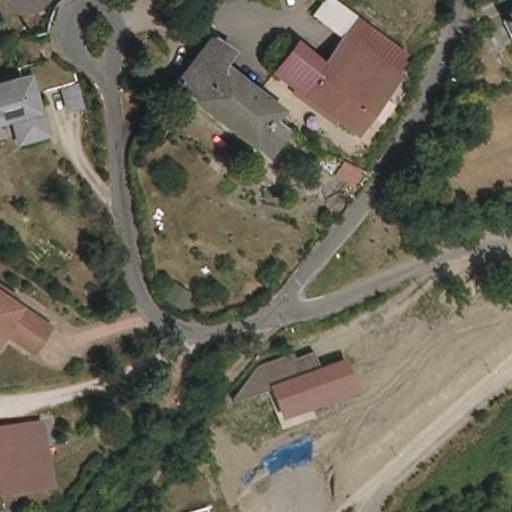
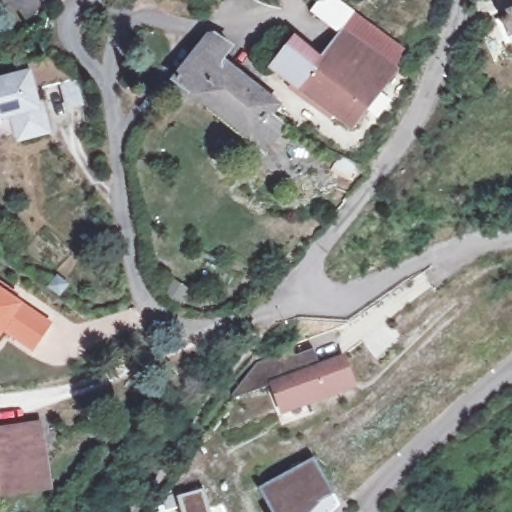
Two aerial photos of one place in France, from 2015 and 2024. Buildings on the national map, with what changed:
unchanged [(265,63),(280,36),(312,49),(332,32),(303,10),(312,0),(348,0),(411,45),(351,122),(265,63)]
unchanged [(510,32),(501,9),(512,4),(512,50),(505,34),(510,32)]
unchanged [(274,107),(264,120),(276,129),(259,148),(170,77),(207,30),(225,45),(221,50),(281,98),(277,103),(274,107)]
unchanged [(69,73),(72,86),(38,95),(41,106),(34,107),(42,137),(15,144),(7,114),(0,116),(0,87),(15,83),(12,70),(38,64),(69,73)]
unchanged [(2,325),(0,328),(0,282),(7,287),(4,292),(45,319),(30,343),(2,325)]
unchanged [(280,417),(269,387),(232,398),(231,395),(255,365),(291,353),(294,358),(313,352),(317,366),(343,358),(353,389),(280,417)]
unchanged [(42,424),(51,485),(0,494),(0,430),(42,424)]
new [(271,512),(260,492),(316,461),(336,497),(343,508),(339,512),(271,512)]
unchanged [(208,512),(196,512),(208,509),(208,512)]

